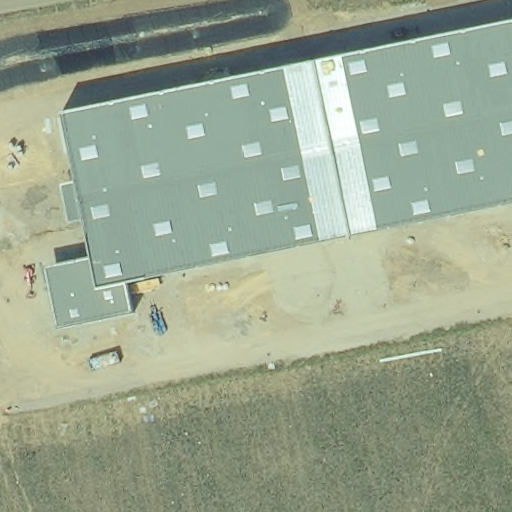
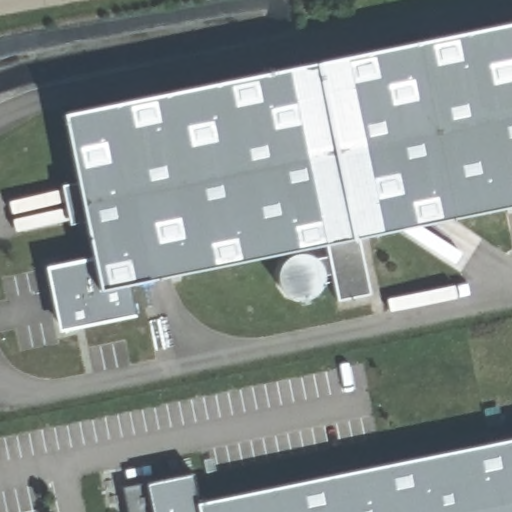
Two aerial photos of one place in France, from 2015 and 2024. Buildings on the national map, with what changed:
unchanged [(512,22),(512,203),(126,281),(133,312),(59,326),(48,266),(93,258),(64,114),(512,22)]
new [(198,501),(512,437),(512,512),(126,512),(121,486),(192,472),(198,501)]

